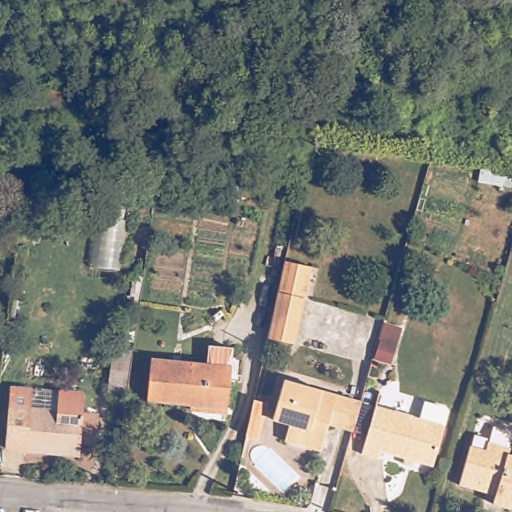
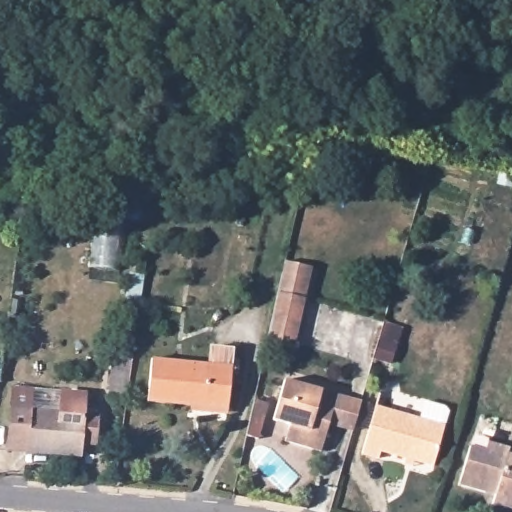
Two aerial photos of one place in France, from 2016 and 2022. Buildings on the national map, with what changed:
unchanged [(512,173),(512,186),(512,188),(478,181),(481,167),(512,173)]
unchanged [(265,333),(280,255),(311,260),(294,339),(265,333)]
unchanged [(147,401),(151,358),(232,366),(228,409),(147,401)]
unchanged [(108,396),(111,369),(130,372),(126,398),(108,396)]
unchanged [(321,446),(284,436),(289,419),(273,414),(284,375),(347,394),(361,398),(352,426),(339,422),(329,419),(321,446)]
unchanged [(36,390),(35,410),(64,412),(65,392),(90,394),(89,414),(103,416),(101,443),(86,442),(85,455),(12,449),(17,389),(36,390)]
unchanged [(258,434),(246,430),(254,394),(269,398),(258,434)]
unchanged [(419,413),(424,396),(444,402),(448,406),(444,420),(433,461),(381,446),(379,453),(362,448),(375,401),(419,413)]
unchanged [(487,498),(489,490),(454,479),(465,440),(481,444),(483,436),(504,443),(503,448),(512,451),(512,506),(487,498)]

